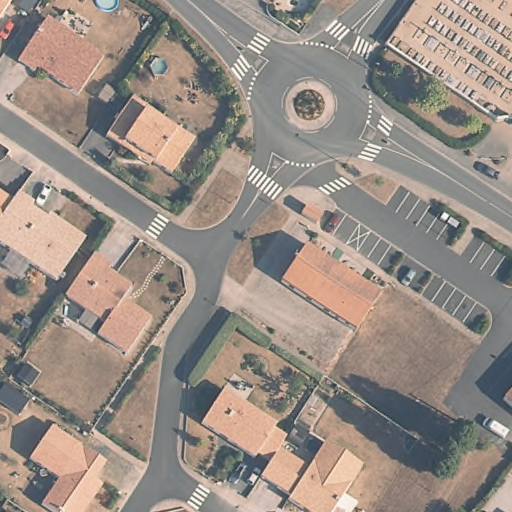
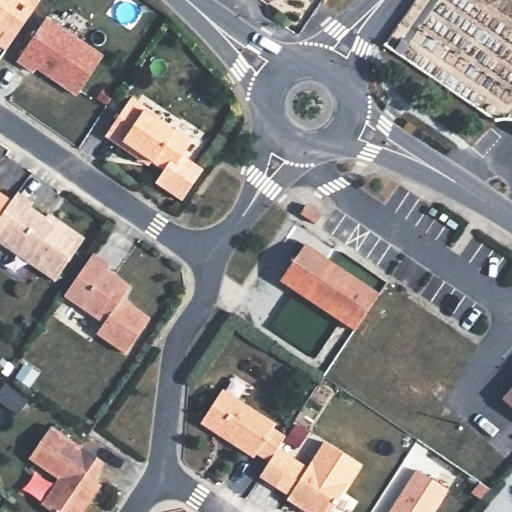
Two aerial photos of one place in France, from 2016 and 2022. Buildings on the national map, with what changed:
unchanged [(0,0),(12,0),(0,17),(0,0)]
unchanged [(77,96),(36,69),(33,74),(16,63),(45,20),(103,59),(77,96)]
unchanged [(169,176),(140,155),(137,160),(104,138),(131,99),(160,119),(157,124),(172,134),(175,129),(193,141),(169,176)]
unchanged [(0,218),(0,194),(11,202),(0,218)]
unchanged [(45,219),(48,215),(55,220),(84,240),(54,283),(0,245),(0,218),(11,202),(14,198),(17,194),(32,204),(29,208),(45,219)]
unchanged [(319,228),(304,217),(310,209),(325,219),(319,228)]
unchanged [(377,301),(356,333),(280,283),(305,245),(380,295),(377,301)]
unchanged [(109,267),(106,272),(129,289),(121,302),(149,321),(125,355),(96,335),(104,324),(64,297),(93,255),(109,267)]
unchanged [(503,399),(512,389),(512,407),(503,399)]
unchanged [(262,454),(259,459),(206,424),(228,391),(281,426),(279,429),(291,438),(283,449),(277,459),(274,463),(262,454)]
unchanged [(97,481),(105,487),(88,512),(56,512),(45,505),(63,479),(33,459),(55,427),(109,464),(97,481)]
unchanged [(274,463),(277,459),(283,449),(313,469),(330,443),(366,467),(337,512),(309,512),(292,501),(294,498),(264,478),(274,463)]
new [(417,471),(448,491),(434,512),(390,512),(417,471)]

